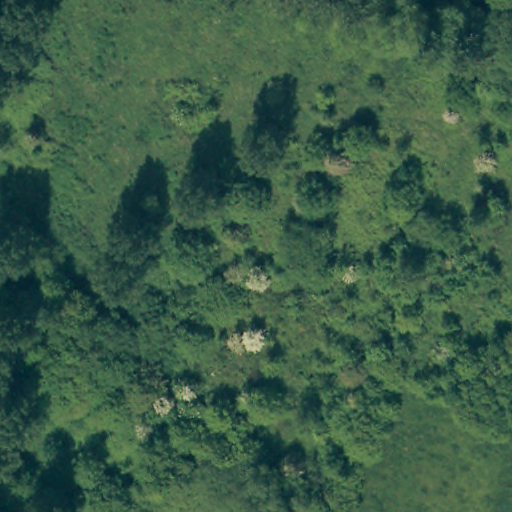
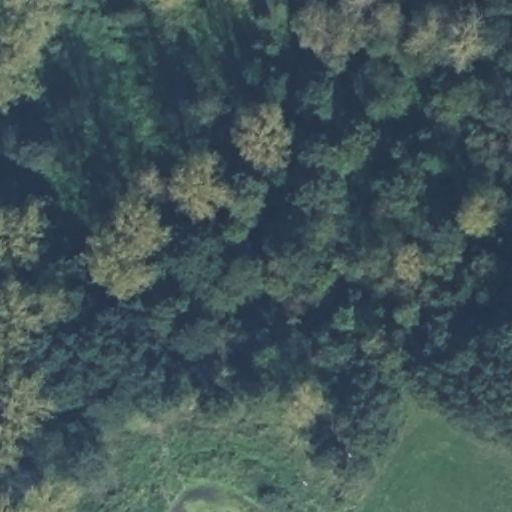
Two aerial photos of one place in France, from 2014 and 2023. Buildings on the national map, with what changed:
[]

